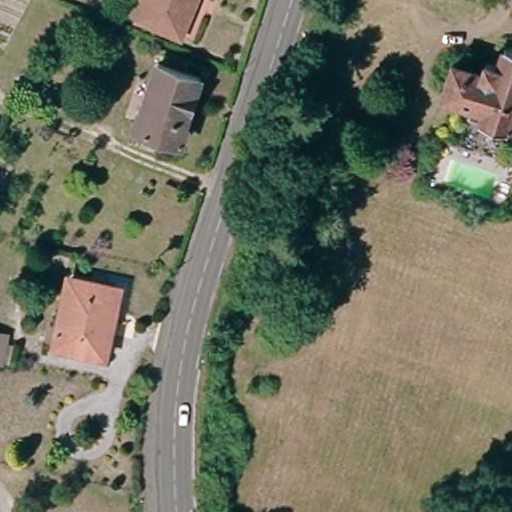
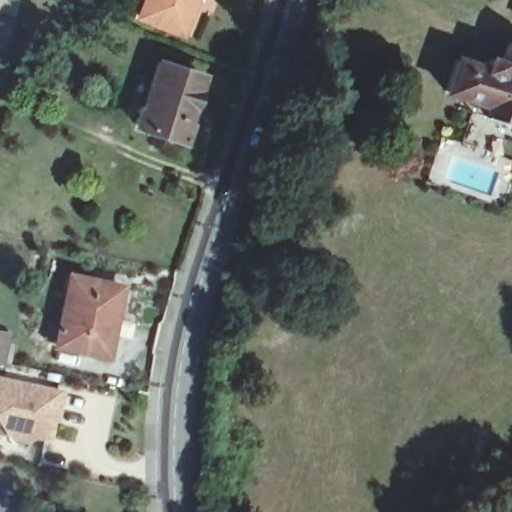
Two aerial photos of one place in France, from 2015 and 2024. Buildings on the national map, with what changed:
unchanged [(148,0),(197,0),(181,39),(139,22),(148,0)]
unchanged [(512,118),(511,122),(482,111),(485,105),(445,90),(456,58),(483,68),(487,59),(498,62),(506,41),(512,43),(512,118)]
unchanged [(157,60),(202,76),(186,125),(190,125),(183,144),(134,126),(157,60)]
unchanged [(114,310),(112,310),(102,354),(56,345),(70,277),(119,287),(114,310)]
unchanged [(2,362),(0,362),(0,335),(7,336),(2,362)]
new [(36,437),(29,442),(11,440),(0,421),(0,375),(65,389),(59,420),(54,420),(50,439),(36,437)]

